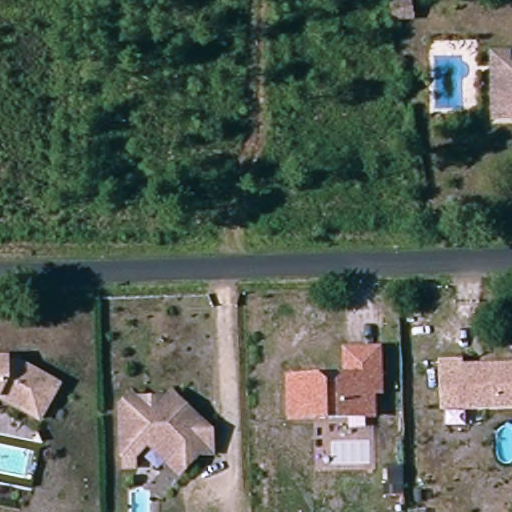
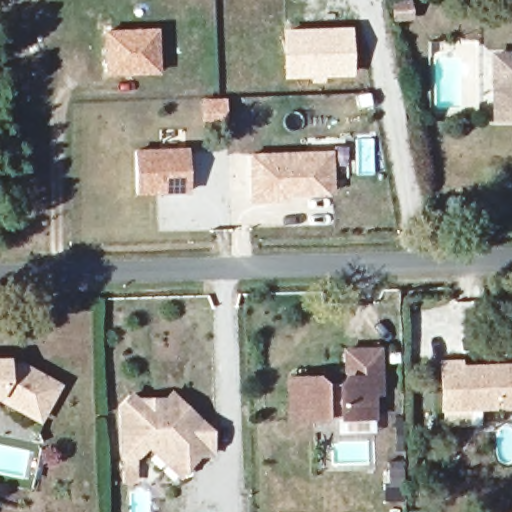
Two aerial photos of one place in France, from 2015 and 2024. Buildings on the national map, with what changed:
new [(412,0),(416,19),(393,22),(389,1),(394,0),(412,0)]
new [(354,26),(355,77),(316,80),(283,80),(282,27),(354,26)]
new [(104,31),(160,29),(161,74),(105,77),(104,31)]
unchanged [(494,44),(512,43),(512,82),(495,82),(494,44)]
unchanged [(496,123),(495,82),(512,82),(512,123),(496,123)]
new [(228,97),(229,121),(201,122),(200,98),(228,97)]
new [(188,147),(191,194),(136,195),(134,149),(188,147)]
new [(333,150),(335,194),(288,197),(288,202),(251,203),(249,154),(333,150)]
unchanged [(293,379),(348,376),(348,352),(377,351),(378,391),(370,392),(369,413),(295,416),(293,379)]
unchanged [(17,362),(30,362),(67,382),(48,417),(6,394),(0,394),(0,358),(16,357),(17,362)]
unchanged [(440,361),(462,359),(464,366),(512,363),(512,409),(442,411),(440,361)]
unchanged [(151,451),(148,451),(149,453),(141,462),(126,462),(124,413),(135,402),(141,407),(170,406),(177,400),(211,432),(217,437),(217,458),(205,459),(192,472),(183,481),(151,451)]

